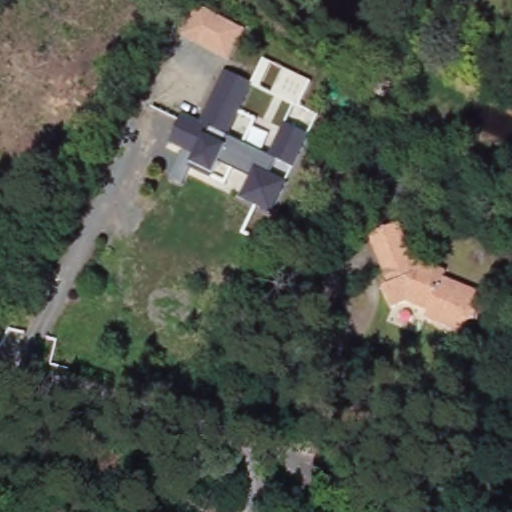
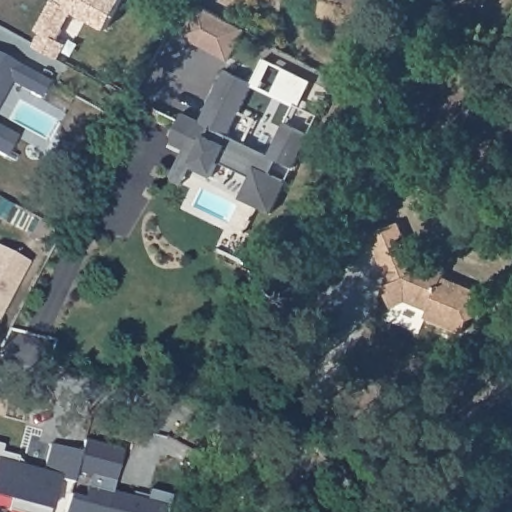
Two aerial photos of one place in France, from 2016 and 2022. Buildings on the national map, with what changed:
new [(35,32),(51,1),(54,3),(56,0),(122,0),(105,32),(71,13),(55,42),(65,47),(57,61),(32,48),(39,34),(35,32)]
unchanged [(182,37),(197,6),(246,31),(230,61),(182,37)]
new [(38,76),(47,81),(39,98),(29,93),(9,83),(0,100),(0,56),(18,65),(38,76)]
unchanged [(162,139),(150,134),(165,104),(177,110),(196,119),(220,68),(248,81),(224,133),(220,130),(216,139),(286,174),(272,202),(258,195),(246,219),(226,209),(236,187),(207,173),(205,176),(182,166),(188,152),(180,148),(162,139)]
new [(6,157),(0,154),(0,127),(17,136),(6,157)]
unchanged [(285,209),(254,272),(234,263),(247,236),(246,219),(258,195),(272,202),(285,209)]
unchanged [(412,259),(441,271),(439,278),(475,292),(471,304),(475,312),(473,318),(464,320),(458,334),(420,318),(423,310),(403,302),(388,308),(380,287),(386,285),(381,271),(367,235),(397,223),(412,259)]
new [(0,317),(0,248),(29,262),(0,317)]
new [(87,496),(93,474),(79,470),(83,453),(87,438),(126,449),(115,490),(150,500),(153,489),(175,495),(170,512),(67,512),(72,493),(87,496)]
new [(4,450),(21,454),(19,463),(46,470),(52,444),(83,453),(79,470),(76,481),(61,477),(51,512),(26,512),(11,508),(13,496),(0,493),(0,441),(6,443),(4,450)]

